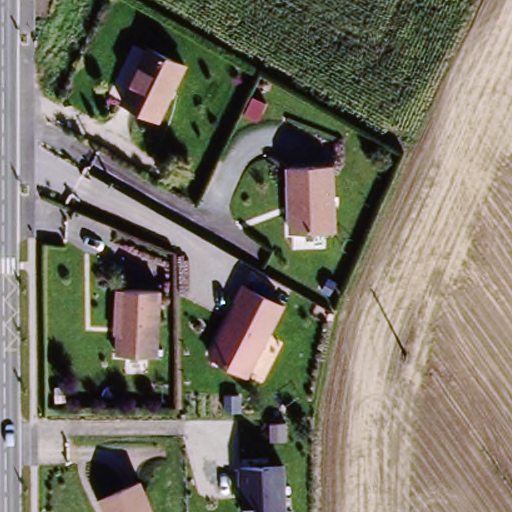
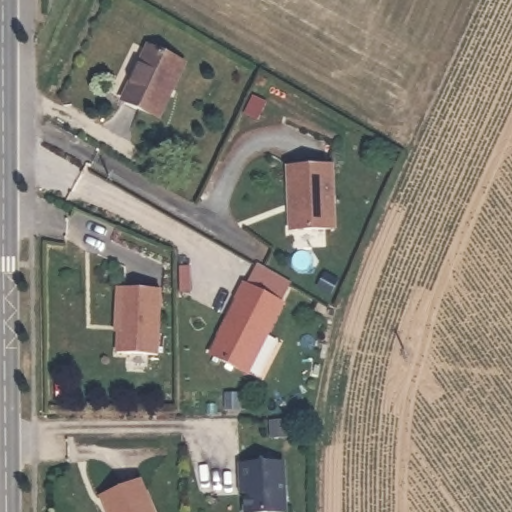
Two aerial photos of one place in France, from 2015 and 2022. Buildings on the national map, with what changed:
unchanged [(161,124),(125,106),(151,52),(188,70),(161,124)]
unchanged [(287,232),(286,193),(285,168),(330,167),(332,230),(287,232)]
unchanged [(236,302),(246,284),(285,304),(250,373),(212,355),(239,303),(236,302)]
unchanged [(157,290),(153,354),(113,352),(115,322),(110,321),(113,287),(157,290)]
unchanged [(240,465),(284,463),(287,512),(243,512),(240,465)]
unchanged [(141,480),(155,512),(104,512),(98,498),(141,480)]

